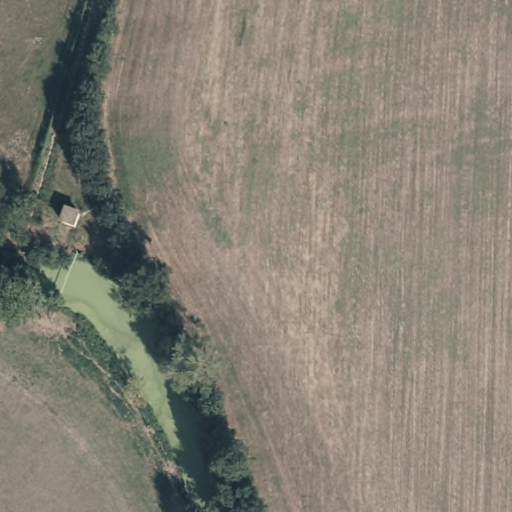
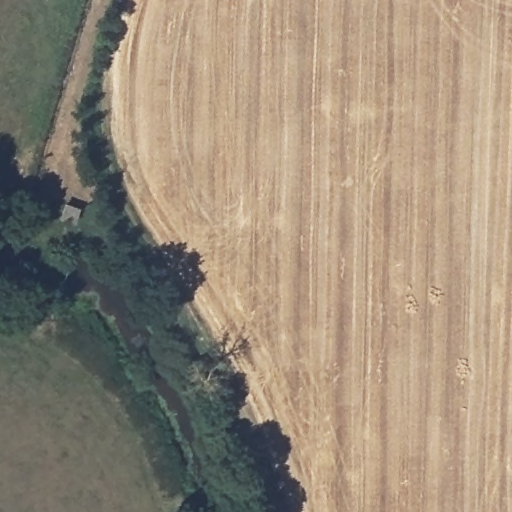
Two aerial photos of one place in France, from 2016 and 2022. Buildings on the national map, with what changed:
unchanged [(63,216),(68,204),(81,209),(75,221),(63,216)]

